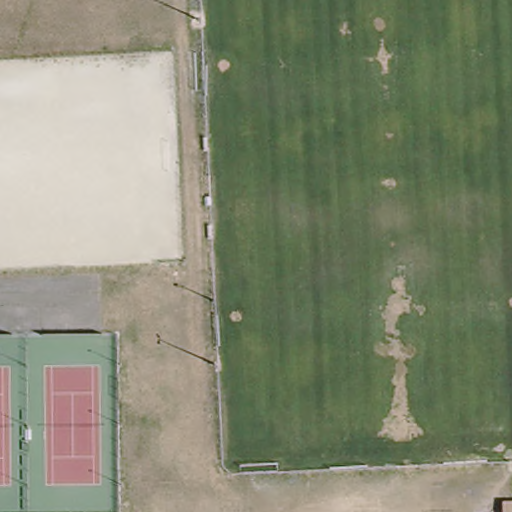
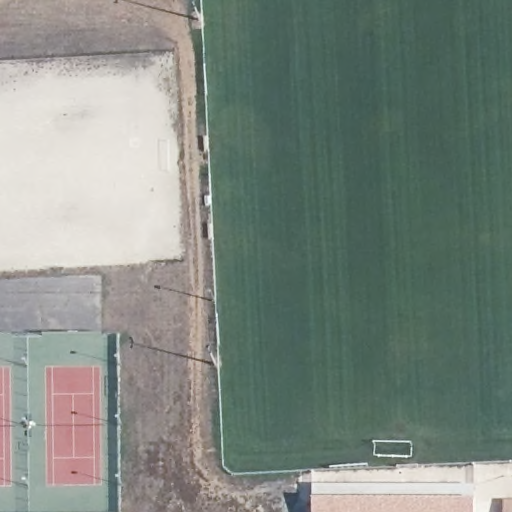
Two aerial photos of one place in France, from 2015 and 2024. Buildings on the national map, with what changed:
new [(459,485),(459,491),(456,491),(456,497),(312,500),(312,486),(459,485)]
new [(456,497),(474,498),(474,512),(312,512),(312,500),(456,497)]
unchanged [(512,503),(512,512),(504,512),(504,503),(512,503)]

